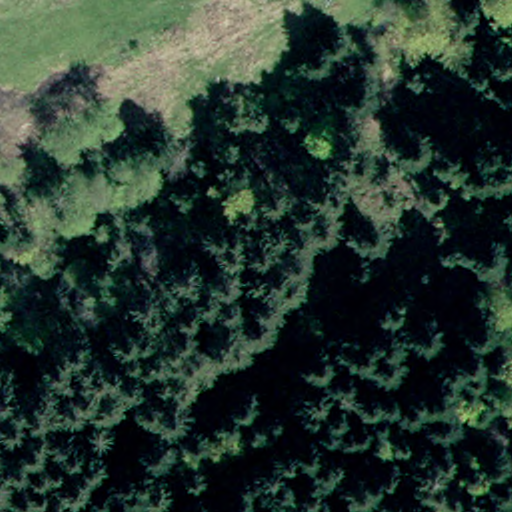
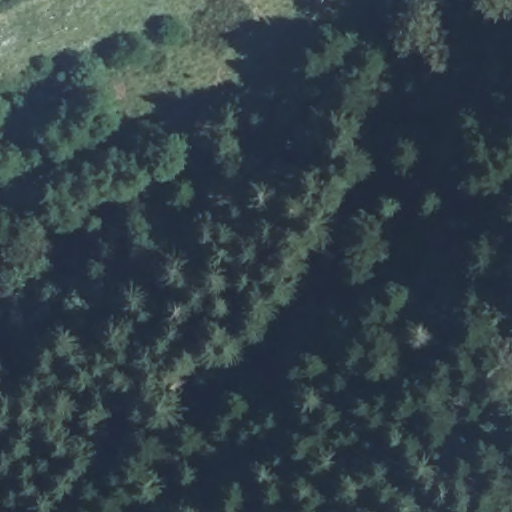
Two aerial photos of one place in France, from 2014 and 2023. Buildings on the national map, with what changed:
[]

